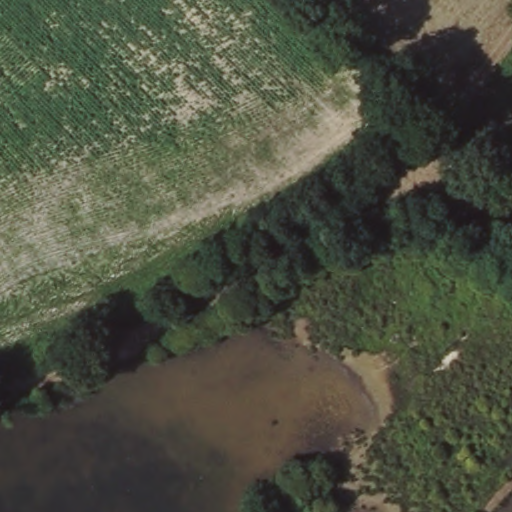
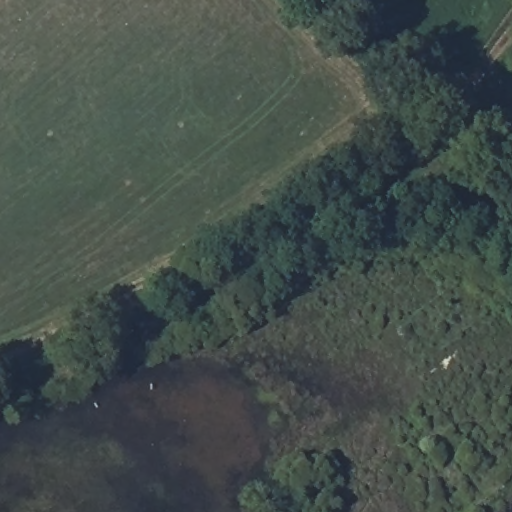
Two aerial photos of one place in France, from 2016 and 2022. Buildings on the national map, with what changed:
unchanged [(499,185),(491,200),(461,181),(472,168),(499,185)]

